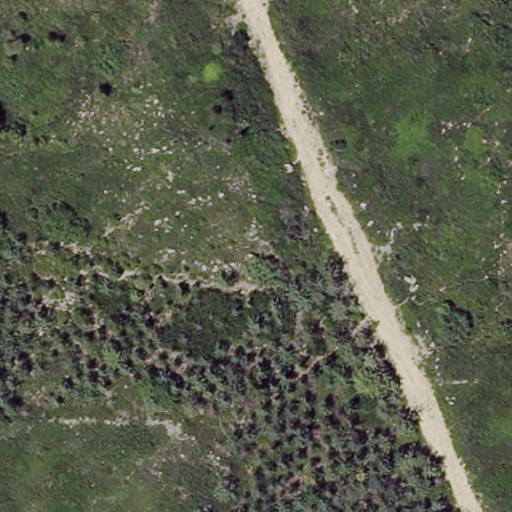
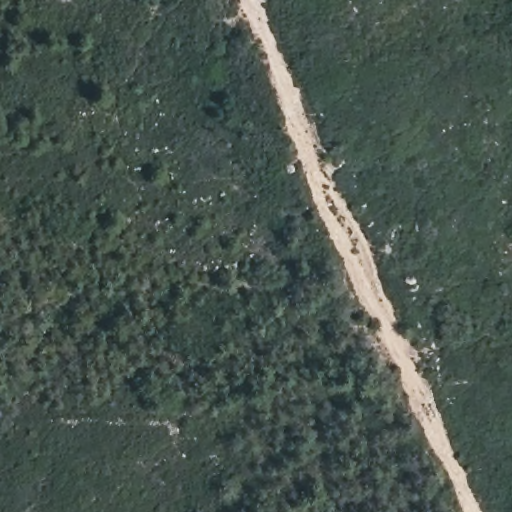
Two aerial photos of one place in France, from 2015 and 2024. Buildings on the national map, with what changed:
[]

